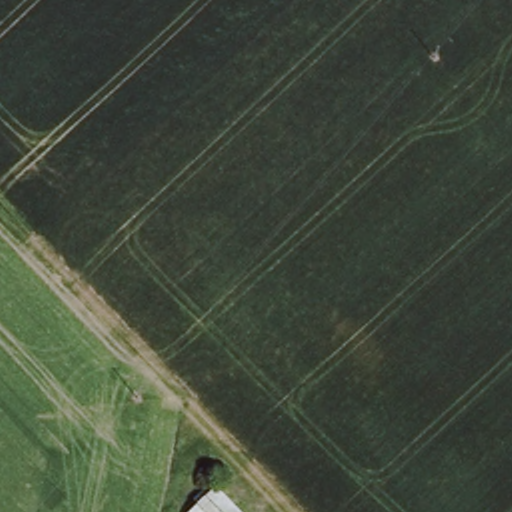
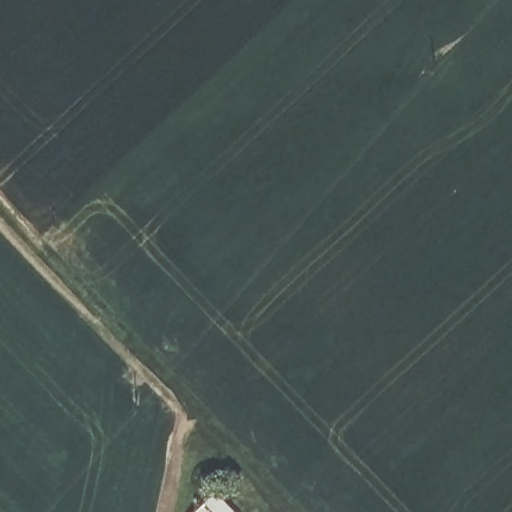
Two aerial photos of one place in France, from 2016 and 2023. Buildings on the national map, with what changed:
unchanged [(195,512),(215,493),(232,512),(195,512)]

